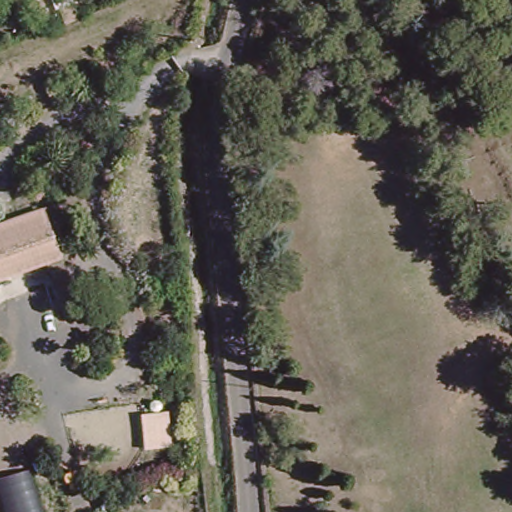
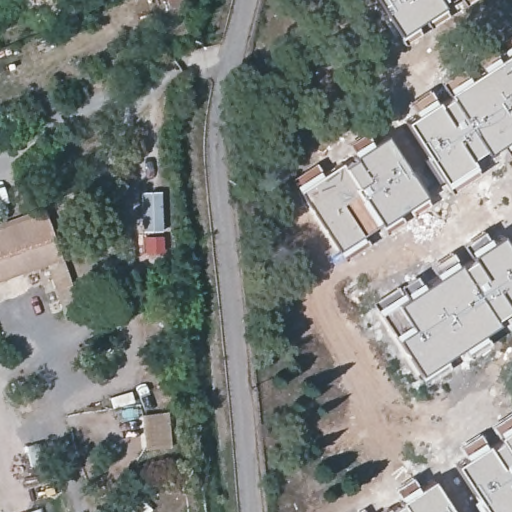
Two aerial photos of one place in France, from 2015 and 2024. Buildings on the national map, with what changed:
new [(377,0),(449,0),(400,35),(377,0)]
new [(435,100),(447,92),(446,90),(506,50),(505,48),(512,43),(512,135),(486,150),(485,149),(470,158),(475,168),(444,187),(401,119),(431,95),(435,100)]
new [(298,179),(318,167),(320,171),(383,133),(426,200),(415,207),(413,204),(368,230),(337,252),(293,182),(298,179)]
unchanged [(44,204),(62,254),(87,248),(92,275),(72,284),(77,305),(65,308),(45,258),(0,271),(0,218),(44,204)]
new [(456,263),(470,254),(465,248),(483,235),(486,240),(500,234),(512,254),(512,315),(508,309),(493,319),(496,322),(445,357),(449,365),(432,374),(430,371),(420,378),(372,309),(452,257),(456,263)]
unchanged [(151,412),(158,446),(124,454),(115,419),(151,412)]
new [(486,444),(498,436),(495,433),(512,422),(512,512),(481,512),(451,463),(481,437),(486,444)]
new [(44,512),(3,512),(0,501),(0,476),(30,468),(44,512)]
new [(397,499),(395,493),(404,487),(402,484),(411,479),(416,487),(431,477),(453,512),(378,512),(397,499)]
new [(362,509),(364,512),(357,512),(362,509)]

